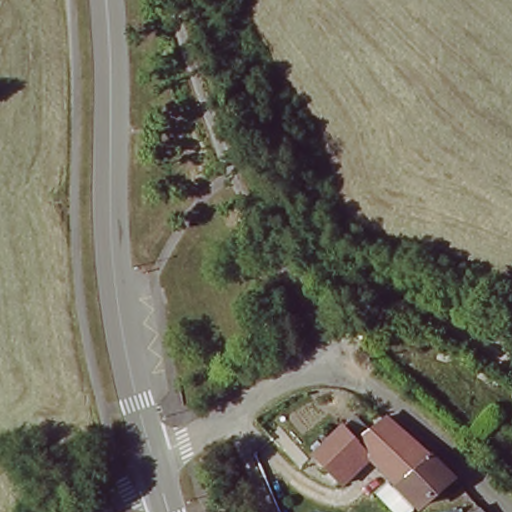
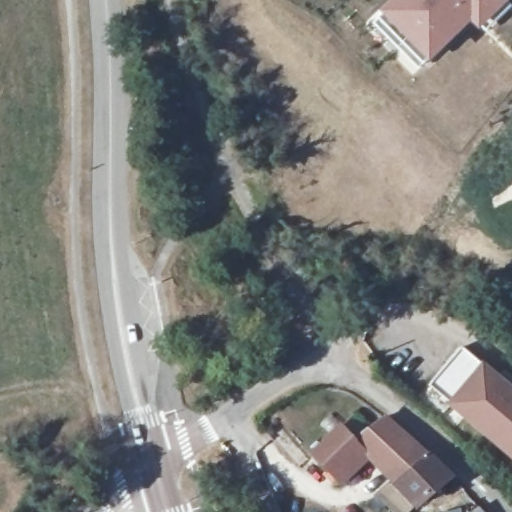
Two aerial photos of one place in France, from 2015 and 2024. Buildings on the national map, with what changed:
new [(512,0),(512,3),(493,25),(483,17),(446,60),(440,53),(427,67),(381,17),(398,0),(512,0)]
new [(481,363),(483,360),(512,384),(512,457),(448,403),(429,387),(461,346),(481,363)]
unchanged [(356,439),(384,417),(430,453),(452,476),(417,506),(368,456),(342,483),(313,454),(342,425),(356,439)]
unchanged [(478,507),(483,512),(469,512),(478,507)]

